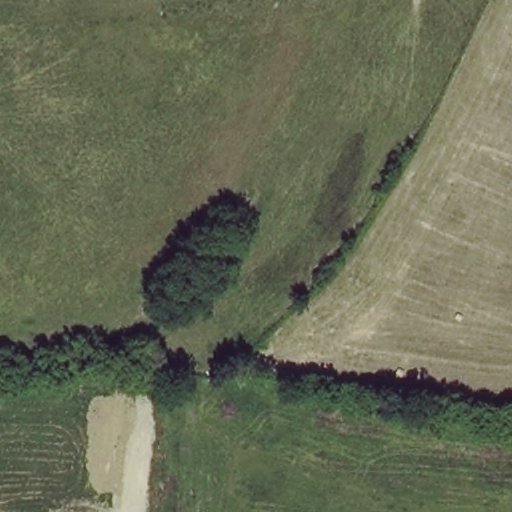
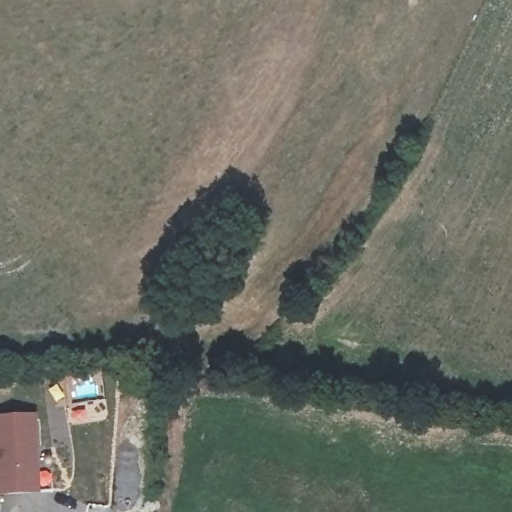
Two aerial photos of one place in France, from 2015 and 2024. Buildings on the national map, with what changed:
new [(39,416),(40,453),(51,452),(52,492),(42,494),(0,496),(0,416),(39,416)]

